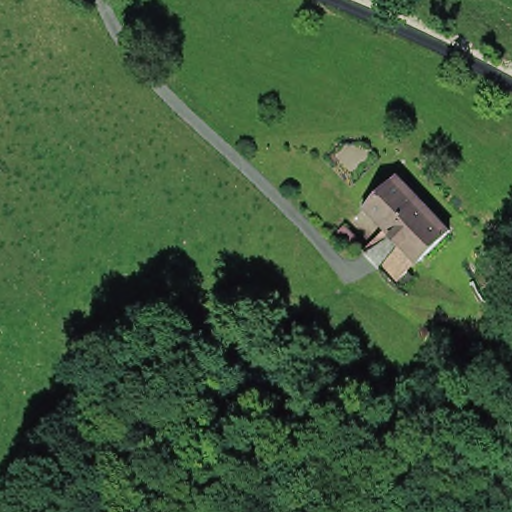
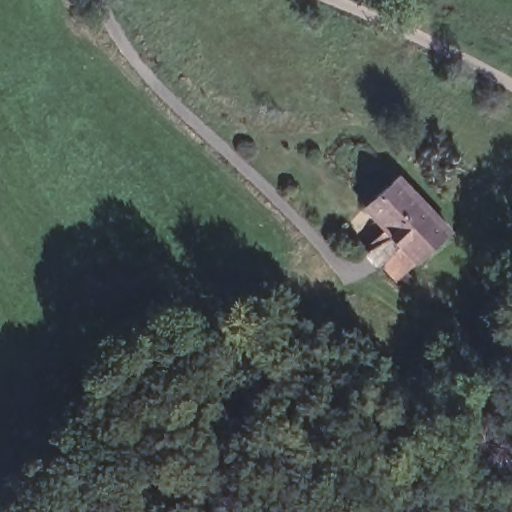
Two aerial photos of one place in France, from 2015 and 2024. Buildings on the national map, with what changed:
unchanged [(382,220),(362,197),(395,167),(445,224),(412,254),(382,220)]
unchanged [(412,254),(402,262),(407,267),(395,278),(360,240),(382,220),(412,254)]

